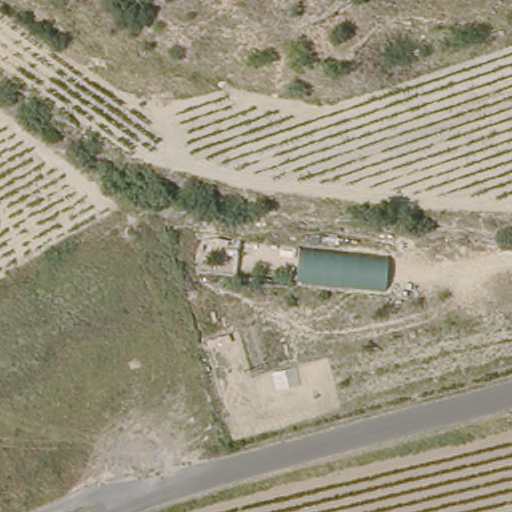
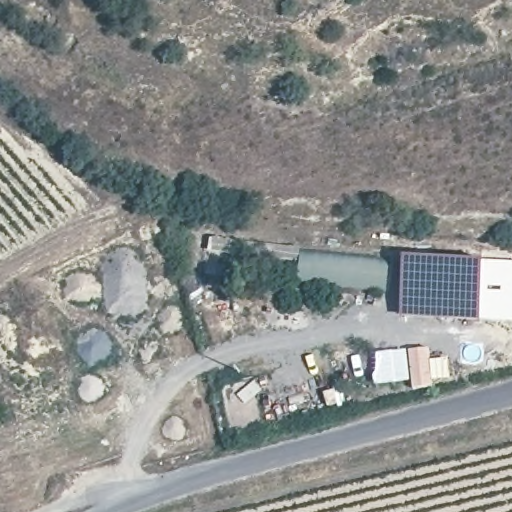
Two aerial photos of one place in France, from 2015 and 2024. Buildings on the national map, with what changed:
unchanged [(386,289),(295,279),(300,247),(389,258),(386,289)]
new [(401,254),(512,258),(512,322),(400,316),(401,254)]

